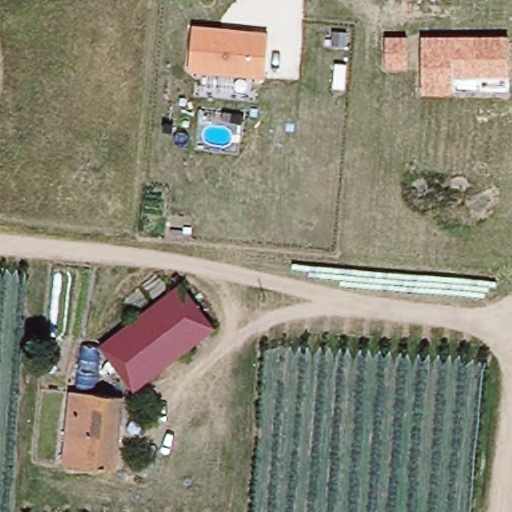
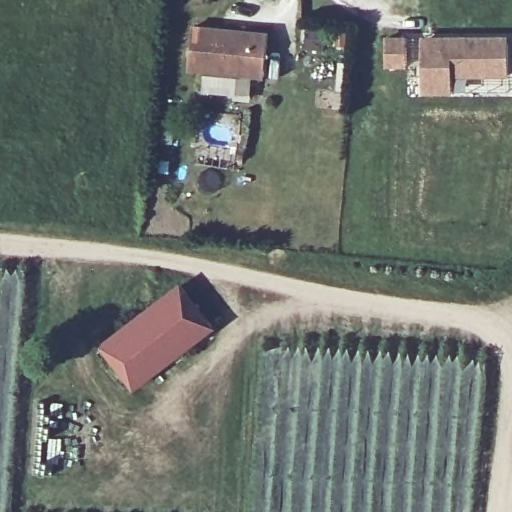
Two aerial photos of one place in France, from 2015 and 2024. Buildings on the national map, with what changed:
unchanged [(266,29),(263,78),(186,72),(191,24),(266,29)]
unchanged [(509,36),(510,77),(453,77),(453,93),(422,95),(420,37),(509,36)]
new [(387,39),(408,39),(407,66),(387,66),(387,39)]
unchanged [(176,286),(212,330),(134,390),(101,345),(176,286)]
demolished [(119,400),(110,470),(56,462),(66,392),(119,400)]

